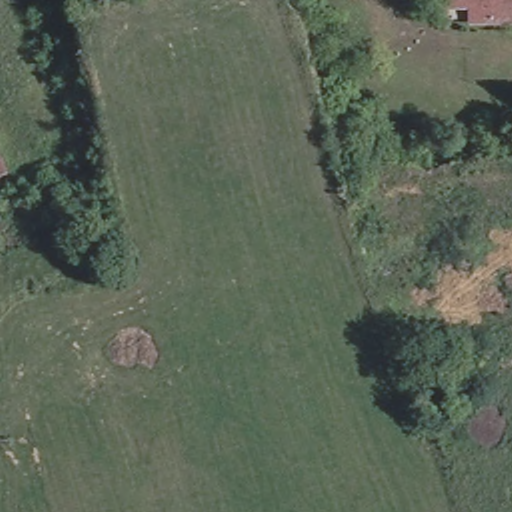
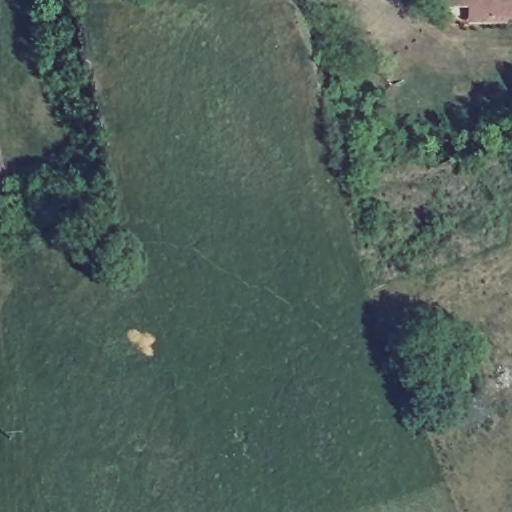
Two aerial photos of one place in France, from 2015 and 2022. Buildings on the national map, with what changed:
unchanged [(438,7),(438,0),(468,0),(469,6),(438,7)]
unchanged [(468,0),(512,0),(512,21),(469,19),(469,6),(468,0)]

